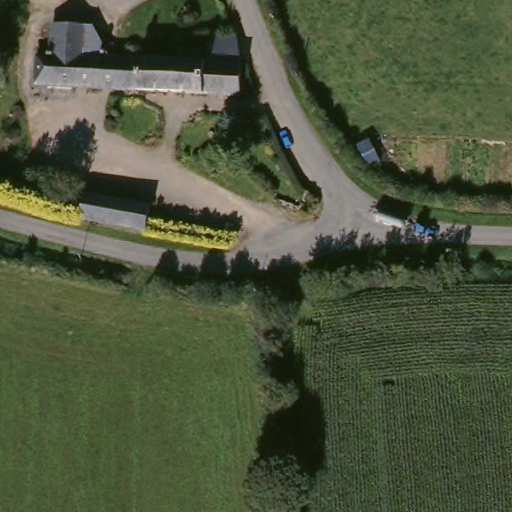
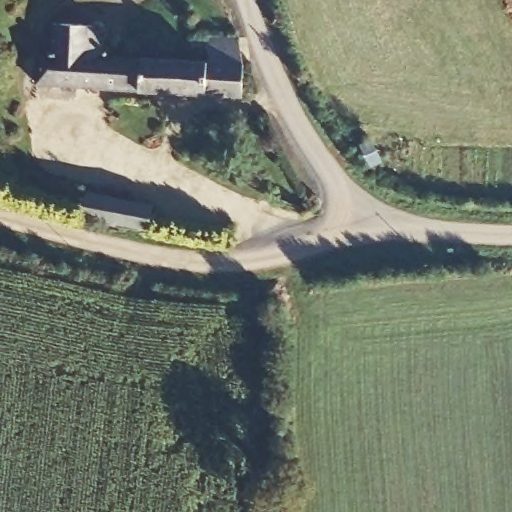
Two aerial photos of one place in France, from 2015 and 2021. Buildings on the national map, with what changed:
unchanged [(47,53),(48,17),(89,18),(110,55),(47,53)]
unchanged [(211,59),(212,43),(226,44),(234,60),(232,91),(30,84),(32,52),(47,53),(110,55),(211,59)]
unchanged [(84,221),(88,197),(153,210),(149,234),(84,221)]

